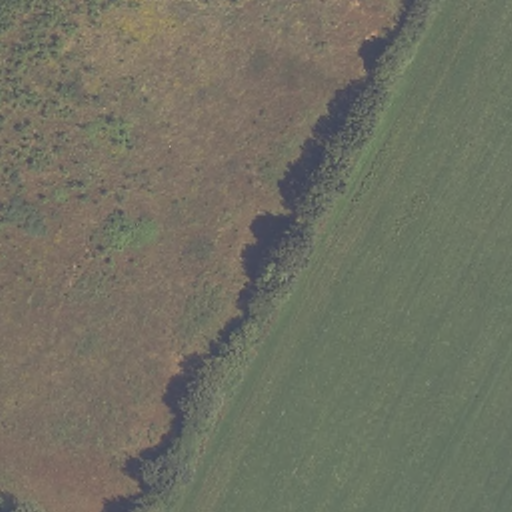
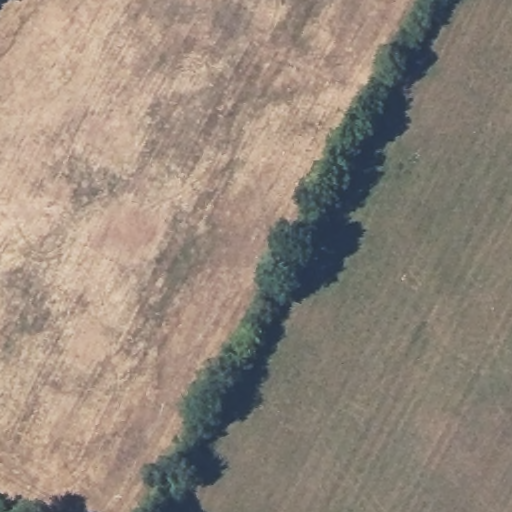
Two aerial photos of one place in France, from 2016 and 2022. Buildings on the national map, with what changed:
[]

